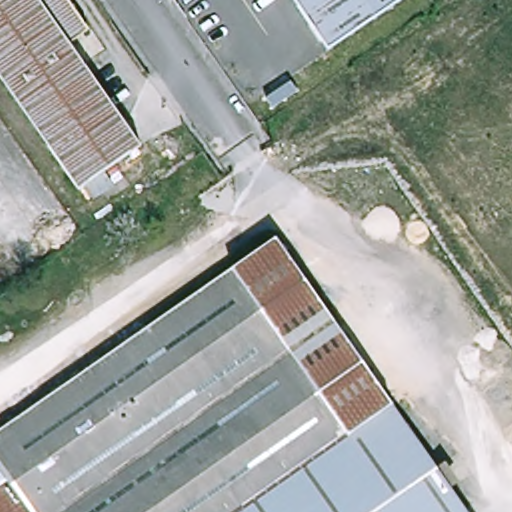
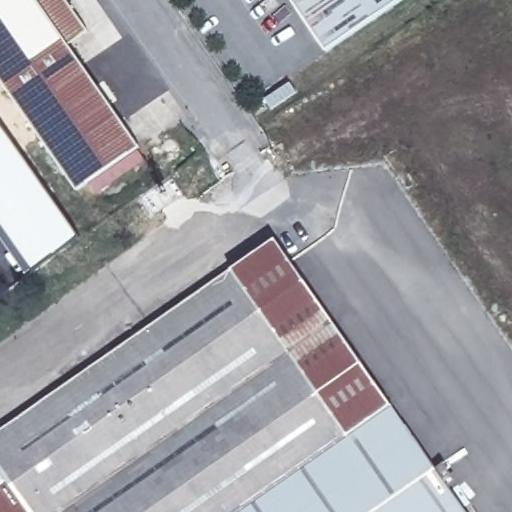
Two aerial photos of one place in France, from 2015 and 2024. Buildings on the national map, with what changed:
unchanged [(71,0),(94,34),(75,47),(144,148),(81,190),(0,72),(0,0),(71,0)]
unchanged [(298,0),(406,0),(333,51),(298,0)]
new [(0,237),(0,125),(79,236),(32,269),(27,275),(0,237)]
unchanged [(280,238),(471,512),(0,512),(0,432),(280,238)]

